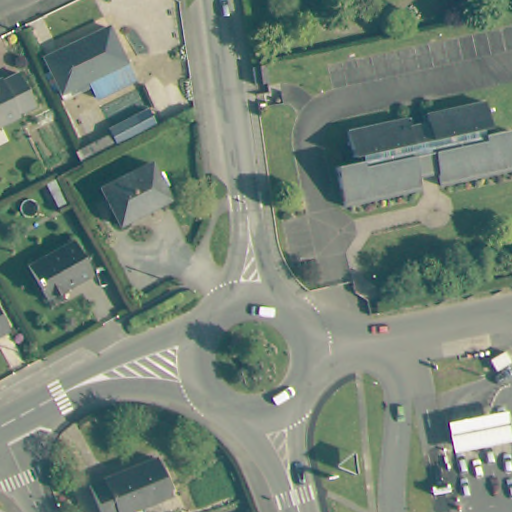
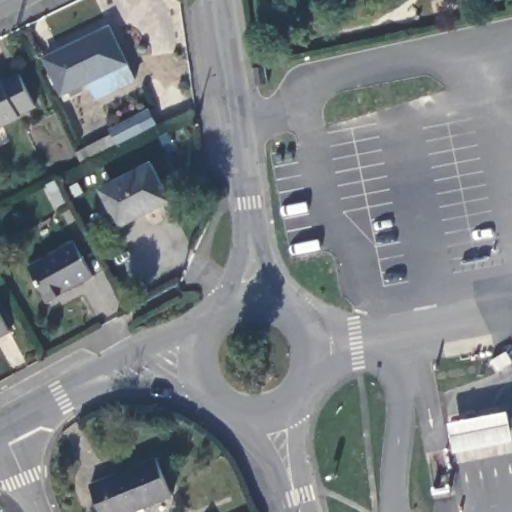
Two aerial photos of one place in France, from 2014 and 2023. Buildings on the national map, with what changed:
unchanged [(86,80),(64,91),(67,97),(59,100),(55,92),(59,91),(43,62),(109,30),(133,78),(94,97),(86,80)]
unchanged [(250,67),(254,86),(243,89),(240,68),(250,67)]
unchanged [(3,80),(4,84),(21,76),(36,106),(19,115),(20,117),(0,127),(0,81),(3,80)]
demolished [(414,171),(417,186),(340,201),(332,166),(359,160),(358,154),(347,156),(341,129),(406,116),(408,124),(423,121),(421,113),(483,102),(487,127),(481,128),(482,135),(507,129),(512,151),(512,167),(437,182),(434,166),(414,171)]
unchanged [(128,114),(137,130),(85,157),(80,145),(105,132),(103,127),(128,114)]
unchanged [(103,194),(152,167),(170,202),(121,228),(103,194)]
unchanged [(26,265),(71,241),(89,275),(44,299),(26,265)]
unchanged [(9,333),(0,338),(0,315),(9,333)]
unchanged [(509,369),(497,373),(492,362),(504,357),(509,369)]
unchanged [(445,421),(507,410),(512,431),(512,440),(452,452),(445,421)]
unchanged [(156,460),(171,497),(134,512),(101,512),(90,487),(156,460)]

